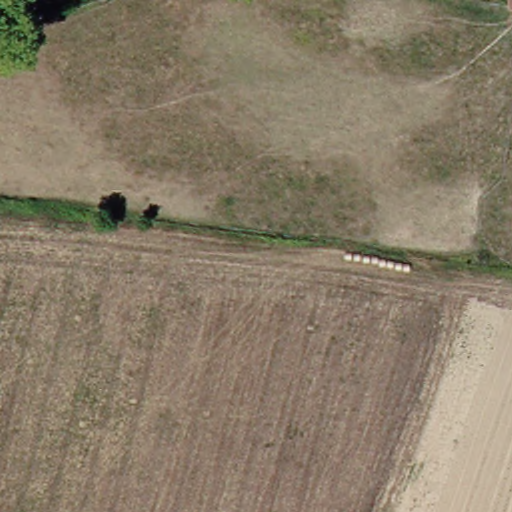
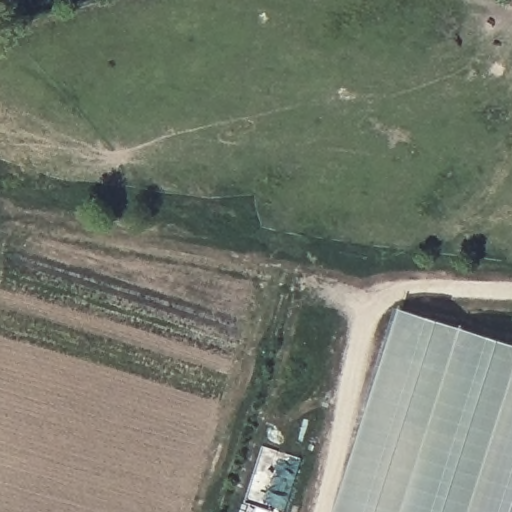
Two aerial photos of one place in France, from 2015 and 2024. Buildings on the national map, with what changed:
new [(512,343),(512,512),(338,512),(403,309),(512,343)]

